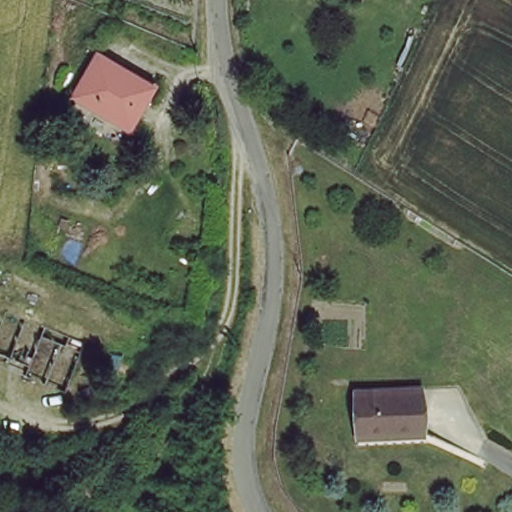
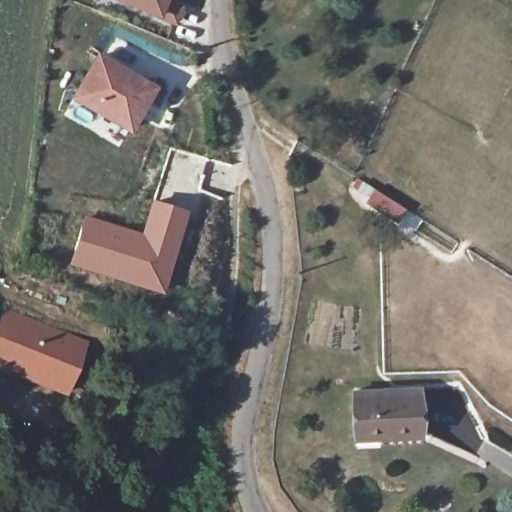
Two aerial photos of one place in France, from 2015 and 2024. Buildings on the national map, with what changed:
new [(175,0),(175,2),(184,7),(175,27),(159,20),(114,0),(175,0)]
new [(129,135),(70,99),(98,52),(157,87),(129,135)]
demolished [(120,128),(74,102),(92,65),(142,91),(120,128)]
new [(212,159),(244,166),(236,194),(205,188),(212,159)]
new [(83,214),(139,232),(151,199),(190,211),(161,295),(67,265),(83,214)]
new [(5,306),(89,341),(65,396),(0,369),(0,317),(5,306)]
unchanged [(351,426),(352,393),(422,394),(424,435),(383,435),(351,435),(351,426)]

